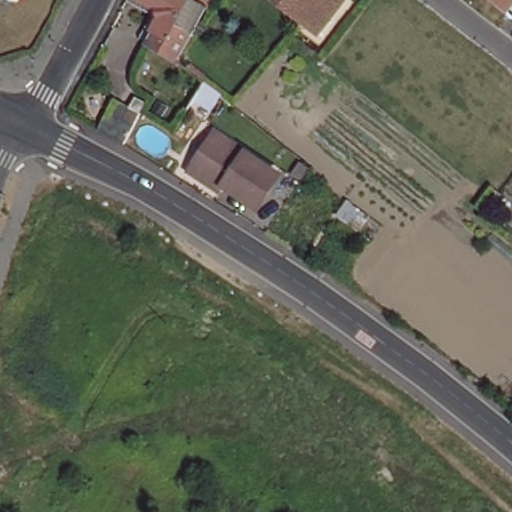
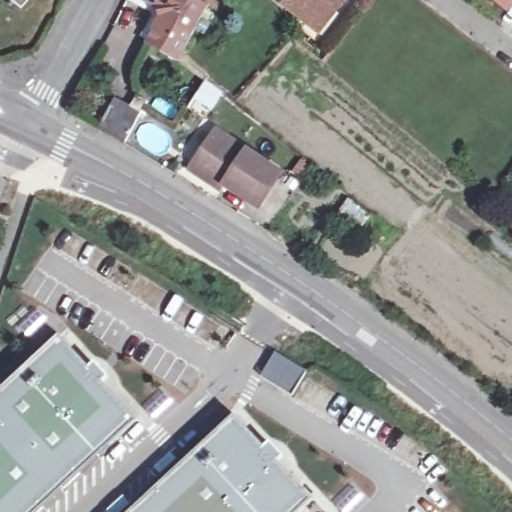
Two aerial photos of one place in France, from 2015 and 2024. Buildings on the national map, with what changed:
unchanged [(17,4),(13,0),(21,0),(17,4)]
unchanged [(210,3),(182,57),(143,36),(157,10),(137,0),(204,0),(210,3)]
unchanged [(314,29),(278,0),(346,0),(336,12),(320,32),(314,29)]
unchanged [(494,0),(508,0),(502,7),(494,0)]
unchanged [(115,97),(142,114),(139,119),(125,141),(97,127),(115,97)]
unchanged [(217,131),(282,175),(260,207),(227,187),(224,192),(190,170),(217,131)]
new [(0,392),(60,337),(138,420),(37,512),(0,512),(0,391),(0,392)]
new [(276,352),(307,371),(293,395),(261,376),(276,352)]
new [(270,442),(284,456),(278,461),(314,499),(299,512),(130,512),(235,415),(265,447),(270,442)]

